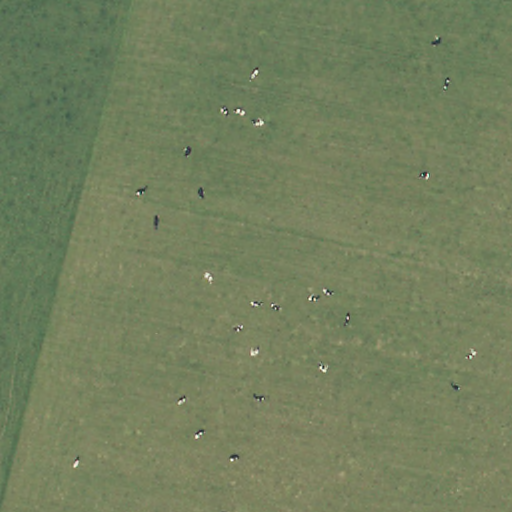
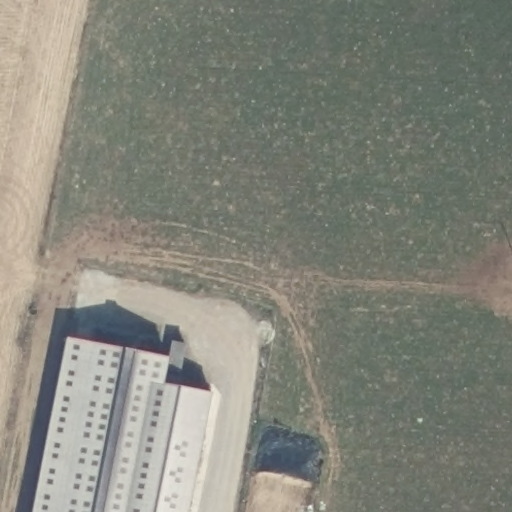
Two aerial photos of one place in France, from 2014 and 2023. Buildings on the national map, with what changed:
new [(172,343),(186,346),(180,375),(165,371),(162,386),(211,395),(189,512),(33,512),(67,340),(169,358),(172,343)]

